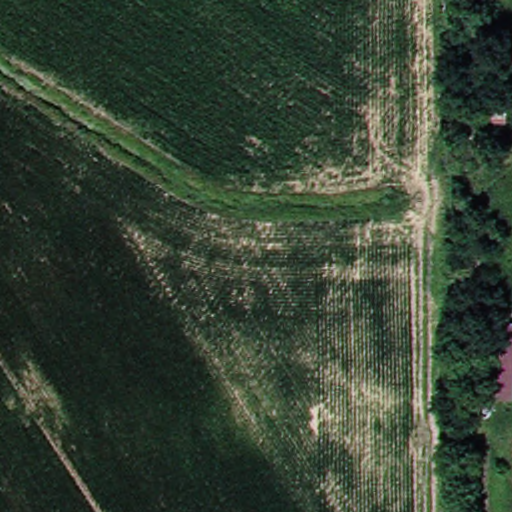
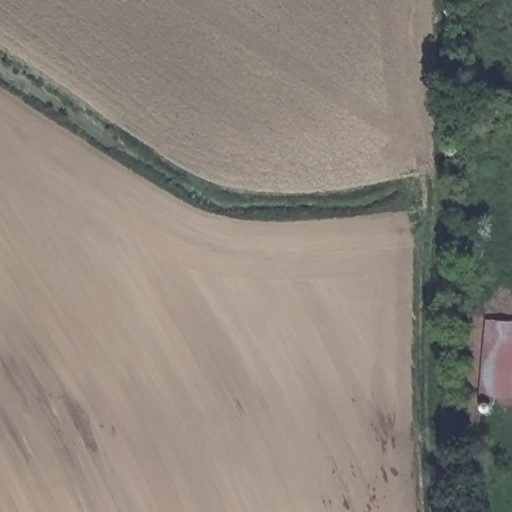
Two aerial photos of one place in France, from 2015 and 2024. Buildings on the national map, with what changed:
unchanged [(487,317),(512,319),(512,393),(482,391),(487,317)]

